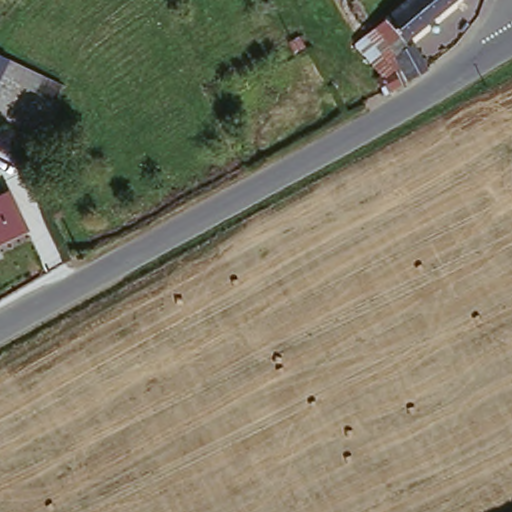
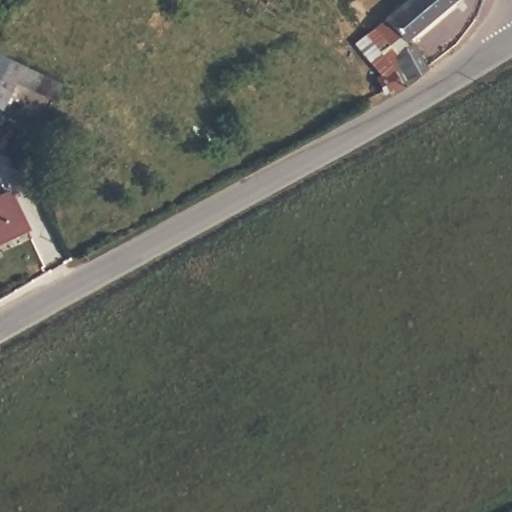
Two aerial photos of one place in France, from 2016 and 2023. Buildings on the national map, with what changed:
unchanged [(358,42),(369,32),(404,0),(448,0),(399,45),(394,42),(387,49),(377,58),(358,42)]
unchanged [(401,85),(385,58),(406,49),(421,74),(401,85)]
unchanged [(66,82),(60,101),(4,78),(0,88),(0,51),(66,82)]
unchanged [(380,97),(371,83),(385,75),(394,89),(380,97)]
unchanged [(0,240),(0,189),(2,187),(5,191),(28,222),(5,236),(0,240)]

